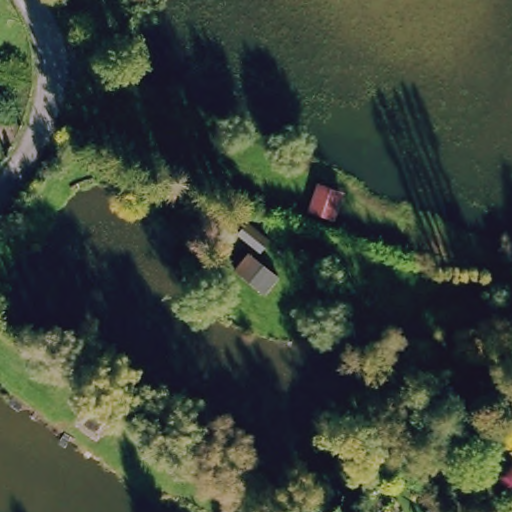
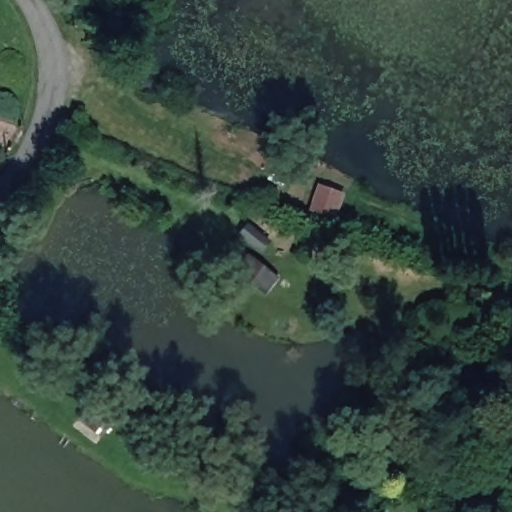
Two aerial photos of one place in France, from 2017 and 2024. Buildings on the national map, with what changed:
unchanged [(310,193),(332,202),(323,224),(300,215),(310,193)]
unchanged [(237,227),(258,243),(248,255),(228,239),(237,227)]
unchanged [(267,280),(252,300),(223,277),(238,258),(267,280)]
unchanged [(96,424),(88,436),(71,424),(80,412),(96,424)]

